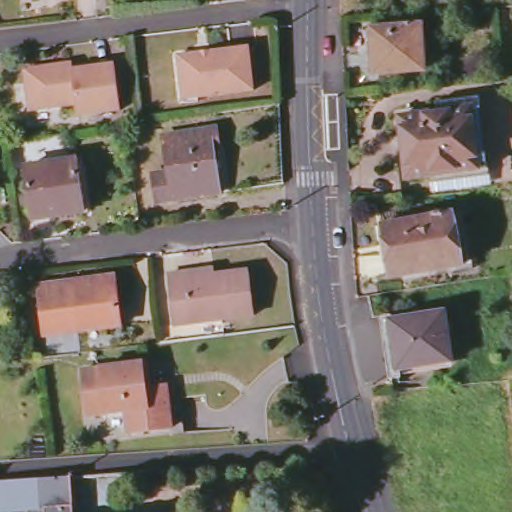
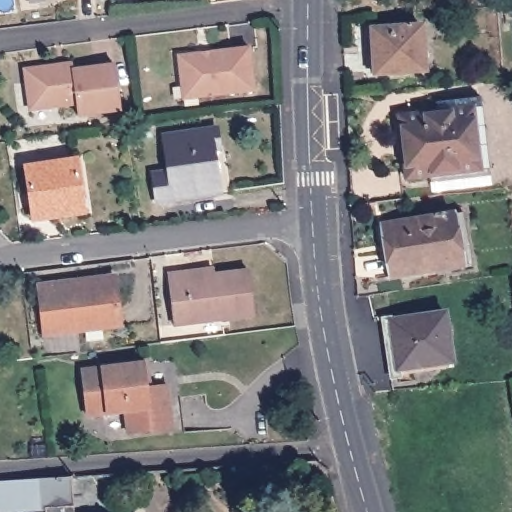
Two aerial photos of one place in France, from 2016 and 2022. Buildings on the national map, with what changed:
unchanged [(373,28),(422,24),(425,68),(377,72),(373,28)]
unchanged [(180,84),(176,53),(199,50),(207,49),(248,45),(252,88),(197,95),(182,97),(180,84)]
unchanged [(120,108),(79,114),(77,103),(29,109),(23,66),(61,62),(72,61),(72,68),(114,63),(120,108)]
unchanged [(395,121),(432,117),(430,106),(476,101),(484,172),(402,182),(395,121)]
unchanged [(153,173),(170,171),(165,135),(217,127),(220,148),(213,149),(220,193),(157,201),(153,173)]
unchanged [(27,166),(77,159),(85,212),(33,218),(27,166)]
unchanged [(382,225),(457,213),(462,243),(455,245),(458,265),(390,275),(382,225)]
unchanged [(167,274),(185,272),(185,278),(250,271),(255,314),(173,323),(167,274)]
unchanged [(39,286),(115,276),(122,324),(45,334),(39,286)]
unchanged [(390,320),(445,311),(453,360),(397,369),(390,320)]
unchanged [(180,433),(167,427),(123,432),(122,412),(83,415),(79,369),(143,362),(145,380),(140,381),(142,388),(162,385),(163,398),(175,397),(180,433)]
unchanged [(74,512),(45,512),(45,510),(19,512),(0,512),(0,482),(72,477),(74,512)]

